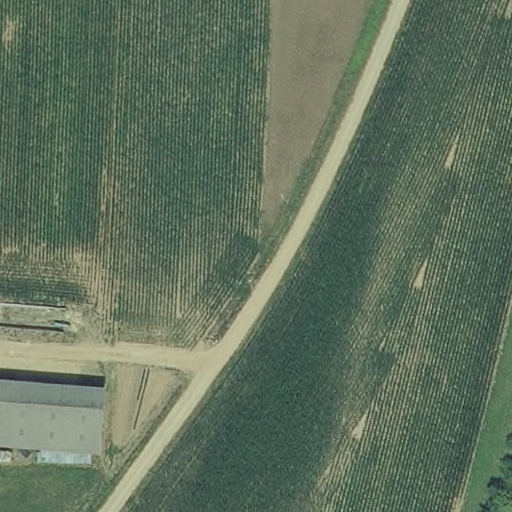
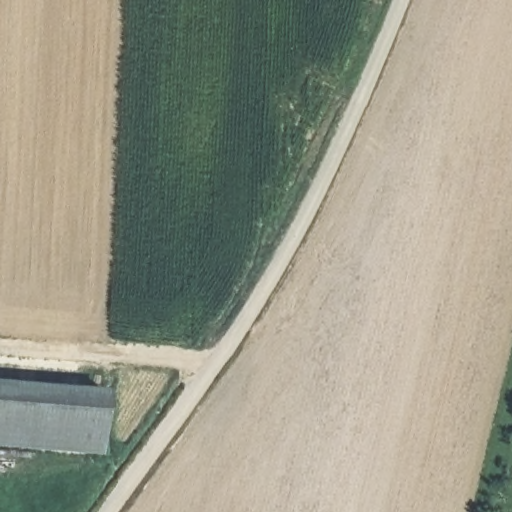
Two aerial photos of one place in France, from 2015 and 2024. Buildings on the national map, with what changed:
unchanged [(102,457),(0,446),(0,385),(107,394),(102,457)]

